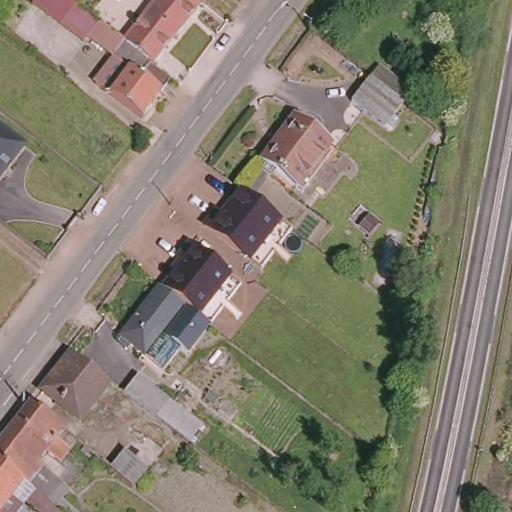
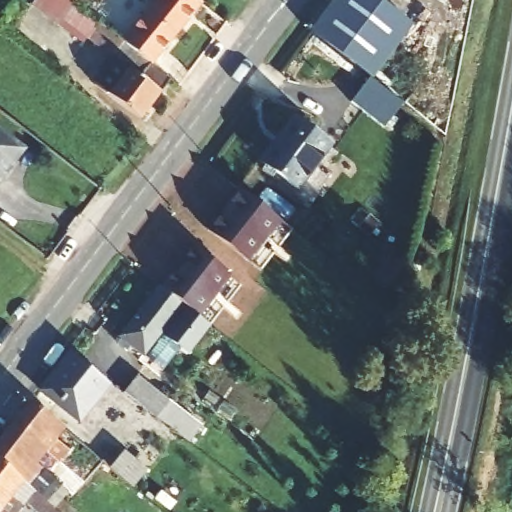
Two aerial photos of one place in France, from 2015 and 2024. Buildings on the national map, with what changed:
unchanged [(84,46),(31,6),(36,0),(80,0),(75,6),(101,23),(90,38),(84,46)]
unchanged [(178,30),(148,6),(153,0),(203,0),(178,30)]
new [(412,26),(376,72),(373,70),(368,76),(311,31),(334,0),(379,0),(412,26)]
unchanged [(148,6),(178,30),(151,62),(121,39),(135,23),(148,6)]
unchanged [(101,23),(121,39),(151,62),(171,77),(142,118),(95,83),(116,60),(90,38),(101,23)]
unchanged [(353,93),(373,70),(410,97),(390,121),(365,103),(353,93)]
unchanged [(295,182),(261,156),(295,113),(329,140),(295,182)]
unchanged [(11,137),(0,129),(0,116),(17,130),(11,137)]
unchanged [(26,161),(0,192),(0,142),(26,161)]
unchanged [(216,189),(221,192),(240,168),(281,199),(248,241),(203,206),(216,189)]
unchanged [(235,258),(202,300),(182,284),(163,269),(182,245),(177,241),(190,224),(235,258)]
unchanged [(1,257),(0,258),(0,256),(1,257)]
unchanged [(138,361),(112,341),(160,280),(171,290),(186,302),(138,361)]
unchanged [(212,321),(191,347),(165,327),(186,302),(212,321)]
unchanged [(78,422),(38,391),(68,347),(110,380),(78,422)]
unchanged [(125,391),(140,372),(170,397),(155,415),(125,391)]
unchanged [(33,412),(55,430),(70,442),(43,475),(71,501),(66,510),(69,512),(32,512),(0,512),(0,457),(33,412)]
unchanged [(123,453),(144,470),(130,486),(117,475),(110,469),(123,453)]

